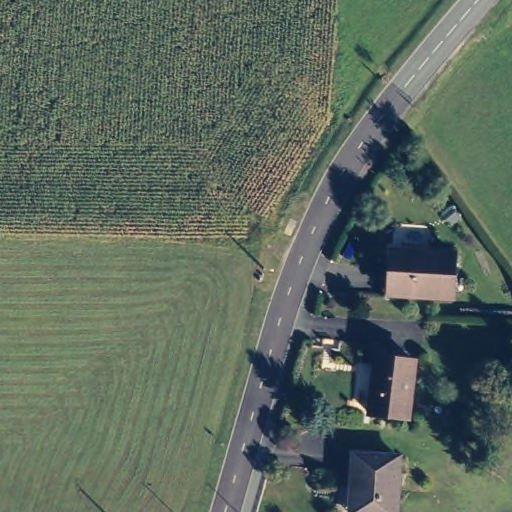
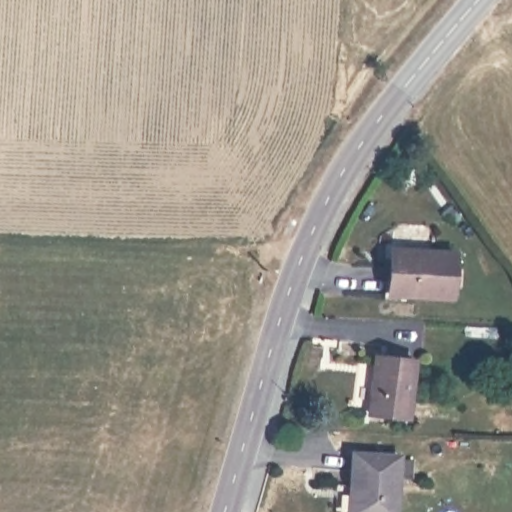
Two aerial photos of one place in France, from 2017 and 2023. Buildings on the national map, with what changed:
unchanged [(446,309),(384,305),(385,287),(387,259),(449,263),(446,309)]
unchanged [(364,419),(371,363),(409,367),(403,424),(364,419)]
unchanged [(347,492),(349,460),(394,463),(391,512),(346,512),(347,492)]

